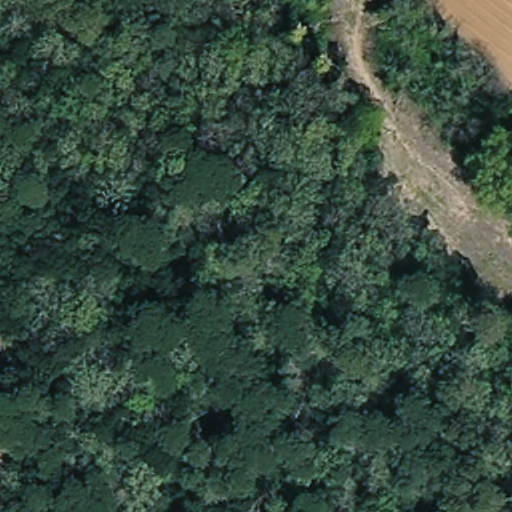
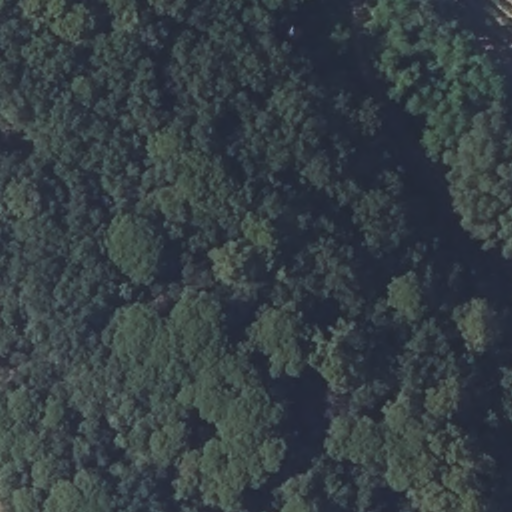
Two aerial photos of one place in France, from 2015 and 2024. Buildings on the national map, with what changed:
[]

